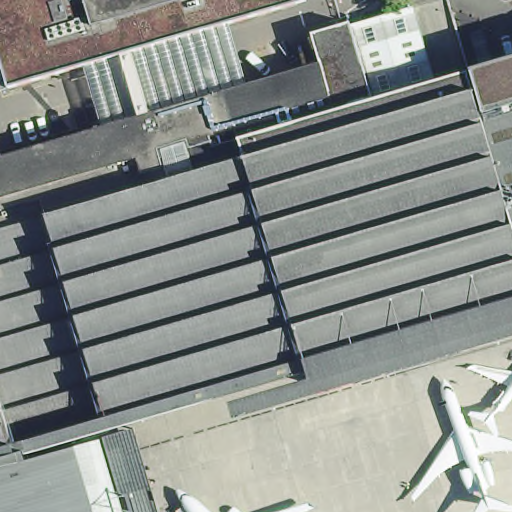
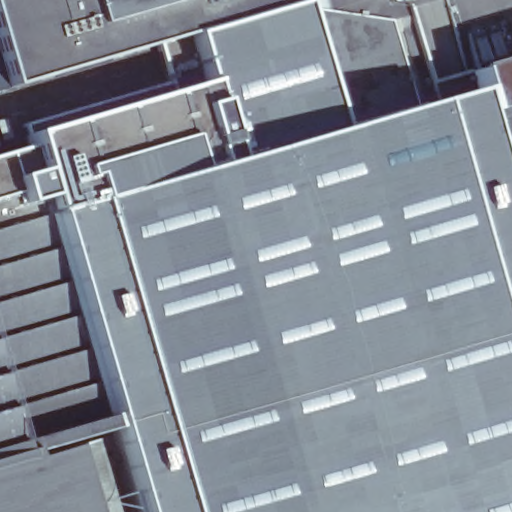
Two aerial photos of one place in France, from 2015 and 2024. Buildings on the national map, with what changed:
unchanged [(0,0),(310,0),(5,78),(0,51),(0,0)]
unchanged [(315,29),(421,1),(442,72),(512,51),(512,338),(240,419),(235,392),(111,435),(135,512),(0,512),(0,146),(315,56),(315,29)]
new [(312,57),(203,88),(187,31),(297,3),(312,57)]
new [(111,435),(235,392),(240,419),(512,338),(512,512),(135,512),(111,435)]

